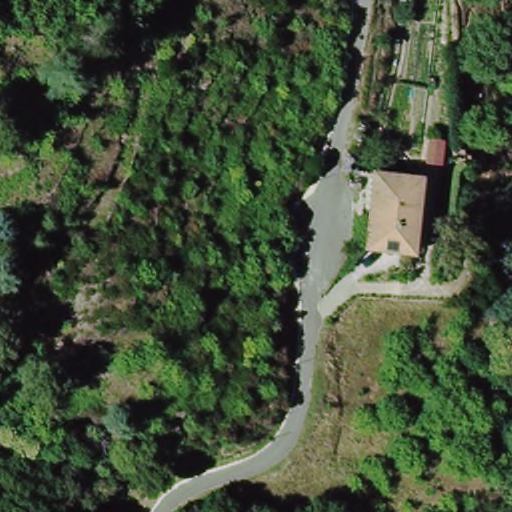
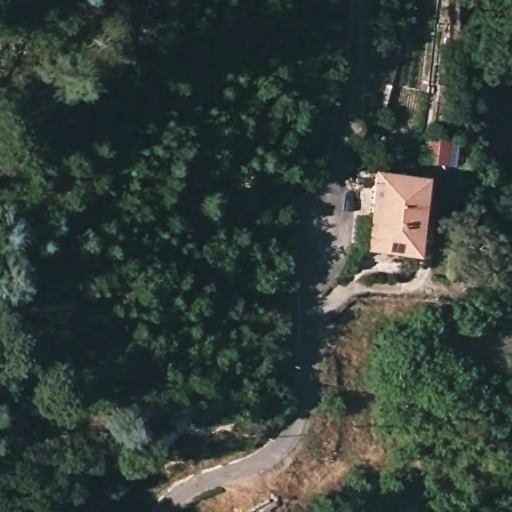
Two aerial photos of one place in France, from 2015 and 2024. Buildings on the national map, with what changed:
unchanged [(410,244),(365,245),(370,166),(412,166),(410,244)]

